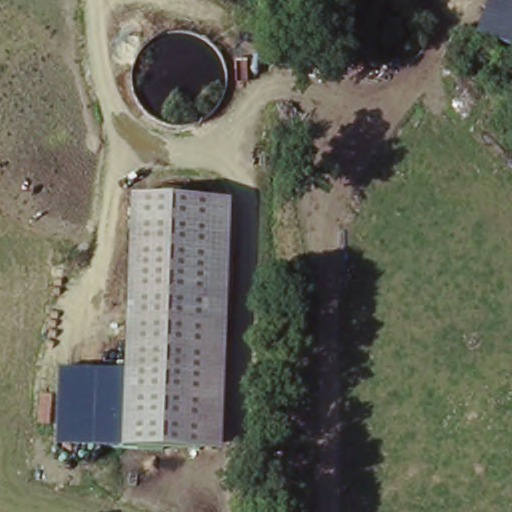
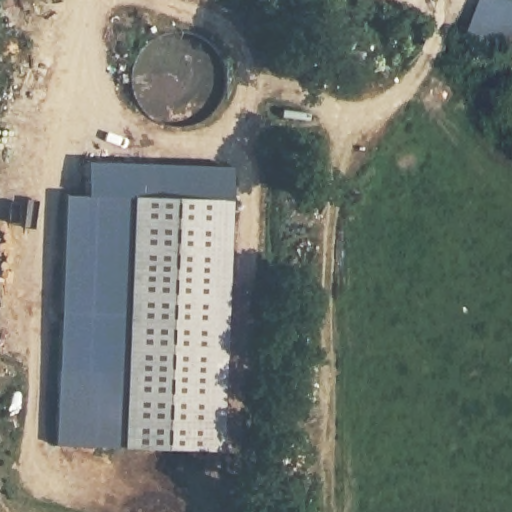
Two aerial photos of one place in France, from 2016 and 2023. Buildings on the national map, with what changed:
unchanged [(474,33),(485,0),(512,0),(512,47),(474,33)]
new [(129,196),(121,372),(58,370),(64,195),(85,195),(85,163),(229,165),(228,201),(129,196)]
unchanged [(129,196),(228,201),(219,452),(119,447),(129,196)]
demolished [(283,212),(320,214),(318,276),(283,277),(283,212)]
unchanged [(56,445),(58,370),(121,372),(119,447),(56,445)]

